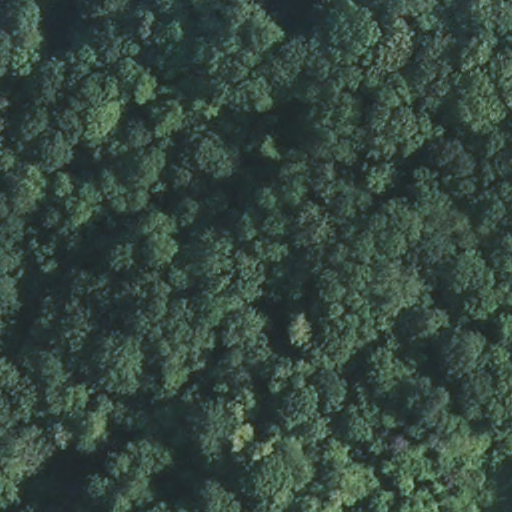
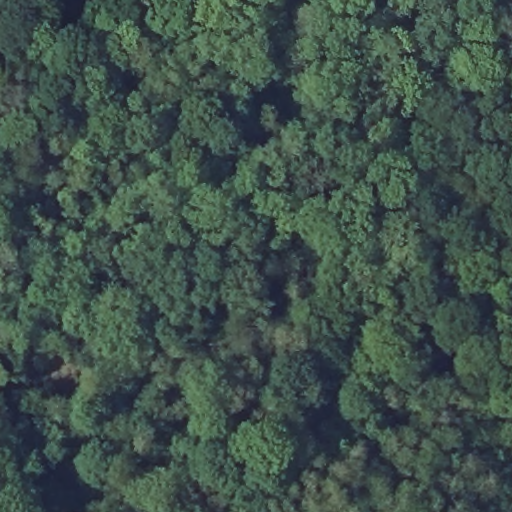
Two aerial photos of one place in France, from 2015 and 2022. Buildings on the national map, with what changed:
unchanged [(305,499),(328,512),(298,512),(305,499)]

